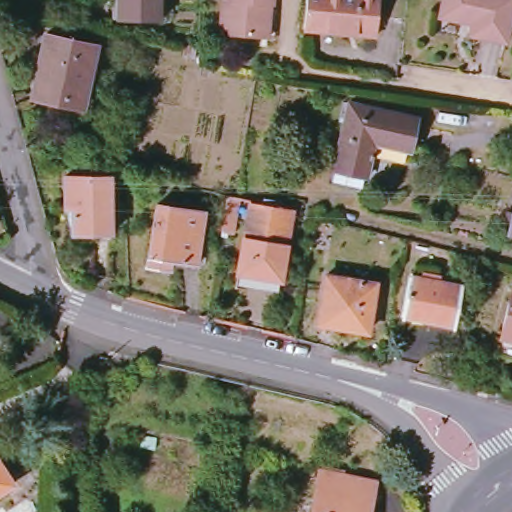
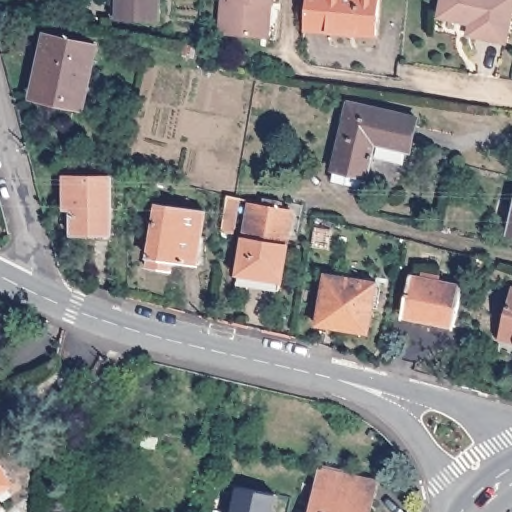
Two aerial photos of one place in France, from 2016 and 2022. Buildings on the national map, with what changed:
unchanged [(118,0),(161,0),(160,20),(117,19),(118,0)]
unchanged [(262,36),(220,32),(223,0),(273,0),(272,4),(269,37),(262,36)]
unchanged [(307,0),(380,0),(377,35),(304,29),(307,0)]
unchanged [(443,0),(512,0),(512,13),(506,41),(470,34),(472,23),(440,16),(443,0)]
unchanged [(46,34),(97,45),(83,109),(63,104),(64,99),(34,92),(46,34)]
unchanged [(350,102),(418,118),(410,151),(375,143),(375,145),(342,137),(350,102)]
unchanged [(342,137),(375,145),(367,176),(334,169),(342,137)]
unchanged [(65,177),(112,176),(112,232),(72,233),(72,208),(65,208),(65,177)]
unchanged [(233,195),(242,197),(259,201),(258,204),(270,206),(270,199),(287,201),(285,209),(299,211),(294,242),(250,235),(255,208),(244,206),(239,233),(227,231),(233,195)]
unchanged [(158,205),(205,212),(197,265),(172,261),(171,270),(149,267),(158,205)]
unchanged [(285,290),(242,282),(250,235),(294,242),(285,290)]
unchanged [(455,326),(431,321),(432,316),(404,311),(410,276),(422,278),(423,272),(439,275),(438,281),(463,286),(455,326)]
unchanged [(327,275),(376,283),(369,331),(346,328),(347,325),(320,320),(327,275)]
unchanged [(512,294),(512,339),(501,336),(512,294)]
unchanged [(0,492),(0,461),(15,483),(0,492)]
unchanged [(368,512),(311,512),(320,470),(374,481),(368,512)]
new [(275,495),(272,512),(233,512),(239,487),(275,495)]

